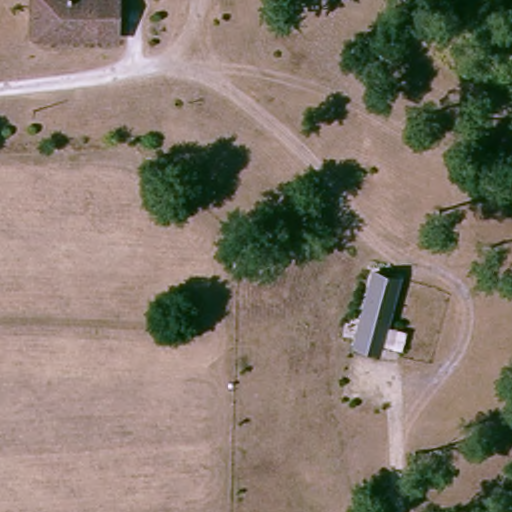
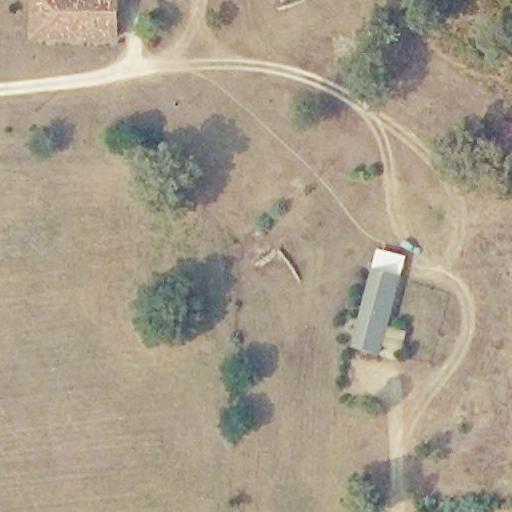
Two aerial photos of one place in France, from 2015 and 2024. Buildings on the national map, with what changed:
unchanged [(115,49),(12,26),(18,0),(124,0),(115,49)]
unchanged [(366,316),(377,271),(402,276),(390,319),(382,348),(358,342),(366,316)]

